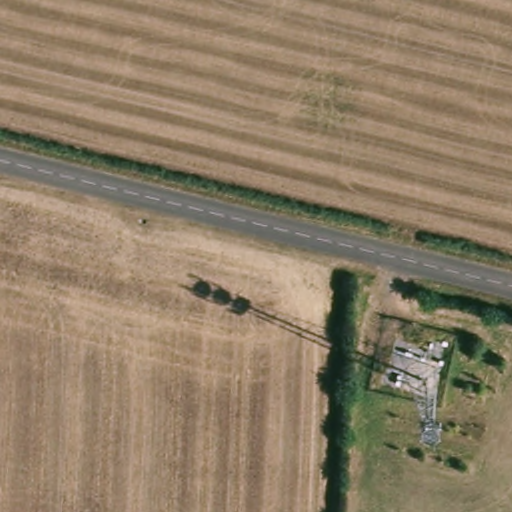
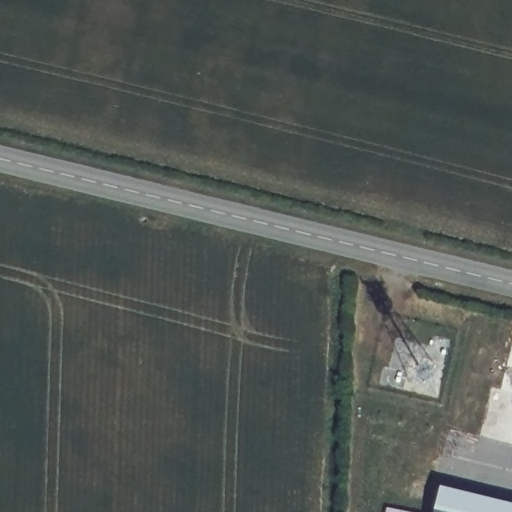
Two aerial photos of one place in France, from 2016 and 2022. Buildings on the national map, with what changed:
new [(512,505),(512,512),(434,512),(440,487),(512,505)]

